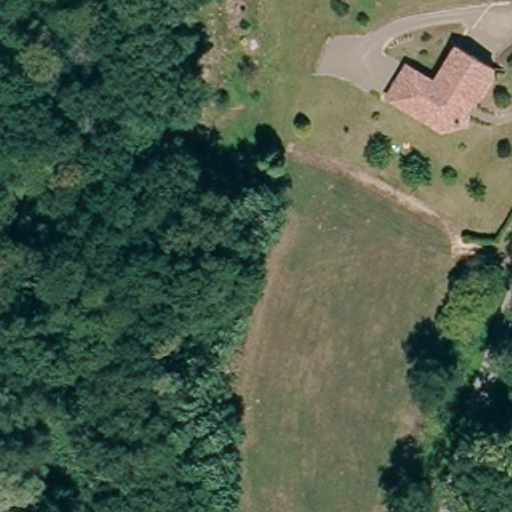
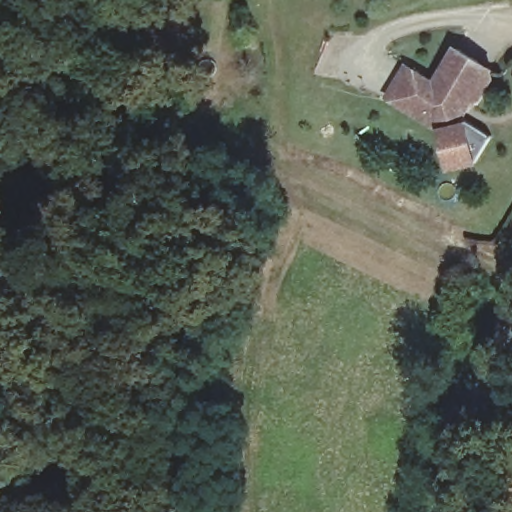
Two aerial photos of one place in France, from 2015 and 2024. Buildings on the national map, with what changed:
unchanged [(387,99),(406,63),(437,79),(453,48),(491,68),(476,99),(463,107),(468,122),(447,130),(412,112),(387,99)]
new [(494,137),(477,166),(448,172),(437,124),(447,130),(468,122),(494,137)]

